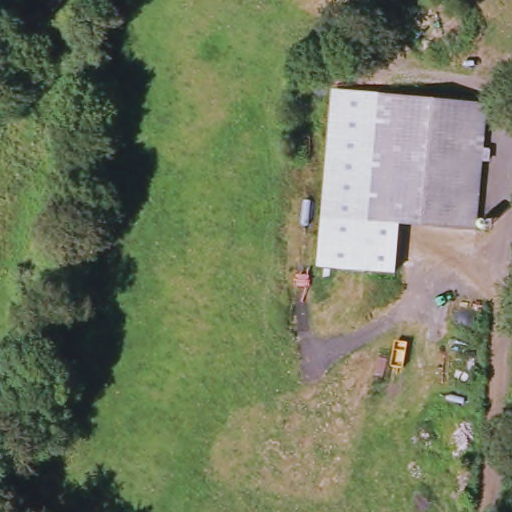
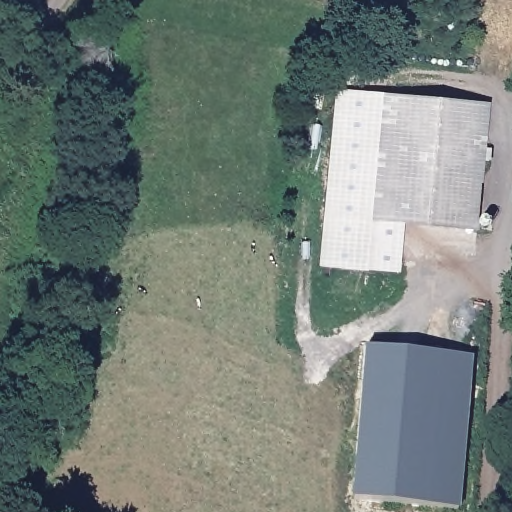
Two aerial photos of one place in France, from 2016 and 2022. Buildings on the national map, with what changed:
unchanged [(477,233),(408,228),(405,277),(320,271),(336,95),(488,108),(477,233)]
new [(473,356),(461,505),(352,498),(364,348),(473,356)]

